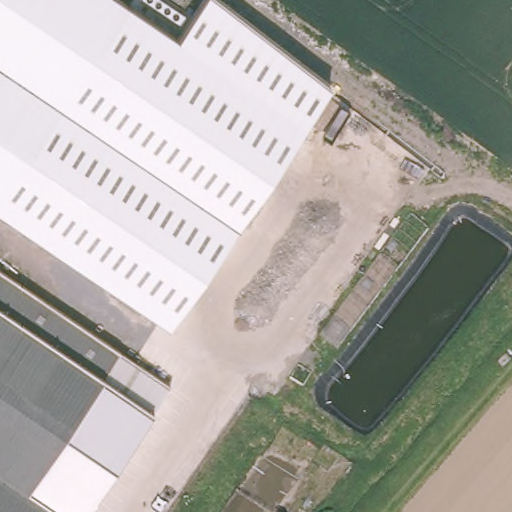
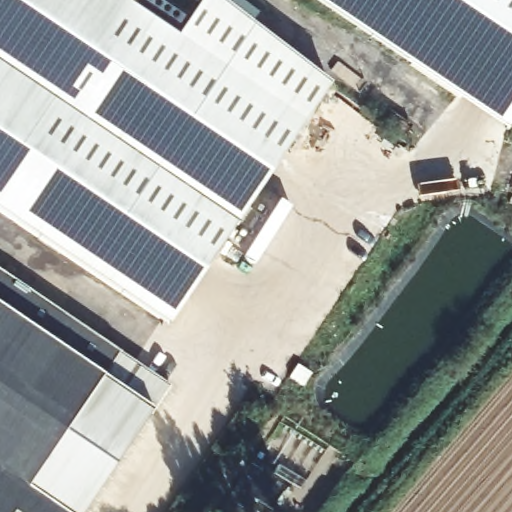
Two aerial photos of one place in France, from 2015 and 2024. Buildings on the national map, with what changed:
unchanged [(204,0),(218,0),(330,87),(236,226),(167,327),(0,214),(0,0),(121,0),(178,39),(204,0)]
new [(121,0),(131,0),(127,5),(121,0)]
new [(323,0),(512,0),(512,114),(507,122),(323,0)]
unchanged [(32,495),(57,512),(0,512),(0,272),(124,357),(32,495)]
unchanged [(32,495),(124,357),(168,386),(151,413),(93,512),(57,512),(32,495)]

